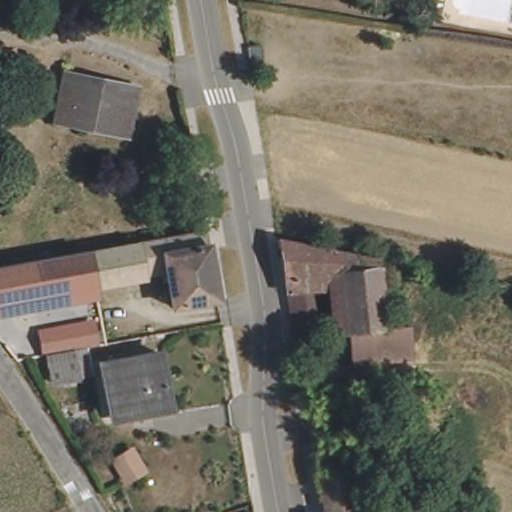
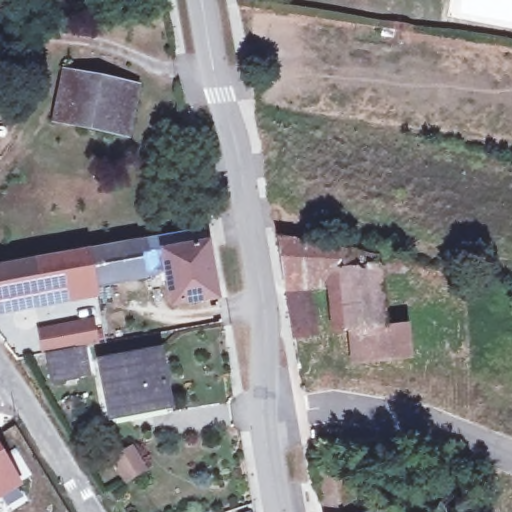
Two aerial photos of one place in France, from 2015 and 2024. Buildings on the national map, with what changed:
unchanged [(246,46),(260,47),(262,66),(258,67),(249,69),(246,46)]
unchanged [(65,70),(137,85),(127,132),(55,117),(65,70)]
unchanged [(209,232),(222,305),(179,314),(171,280),(0,311),(0,273),(198,235),(209,232)]
unchanged [(276,232),(294,235),(375,252),(384,323),(405,322),(409,348),(387,350),(387,355),(353,359),(350,326),(344,326),(339,270),(299,267),(301,282),(285,285),(276,232)]
unchanged [(392,245),(392,255),(375,252),(377,242),(392,245)]
unchanged [(296,348),(285,285),(301,282),(312,346),(296,348)]
unchanged [(85,328),(95,327),(99,345),(89,347),(85,328)]
unchanged [(61,352),(72,350),(83,348),(88,376),(51,383),(46,355),(61,352)]
unchanged [(98,363),(158,352),(168,404),(108,415),(98,363)]
new [(0,499),(0,445),(23,485),(0,499)]
unchanged [(111,457),(130,447),(142,469),(123,480),(111,457)]
unchanged [(315,473),(347,466),(356,512),(322,512),(315,473)]

